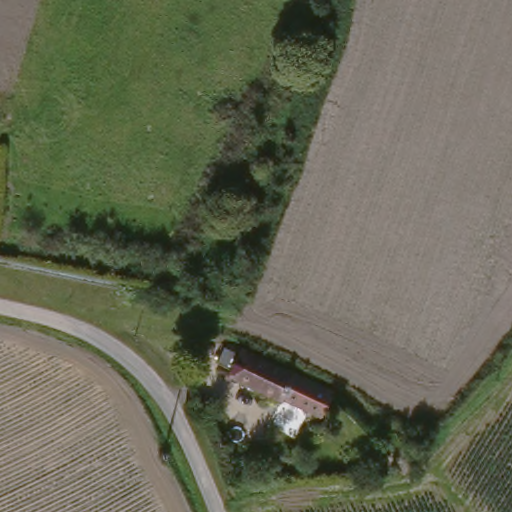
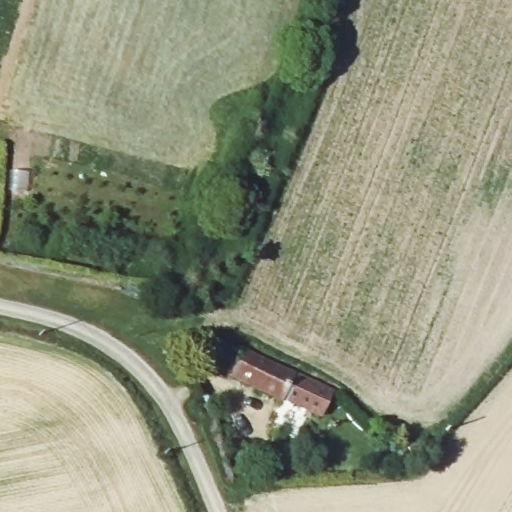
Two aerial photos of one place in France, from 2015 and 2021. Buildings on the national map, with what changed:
unchanged [(240,351),(334,400),(322,425),(223,382),(240,351)]

